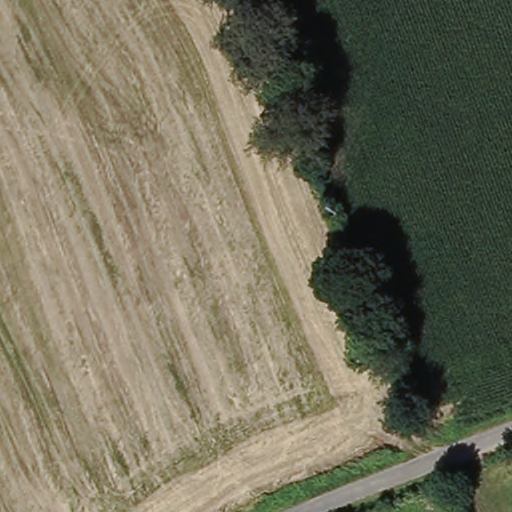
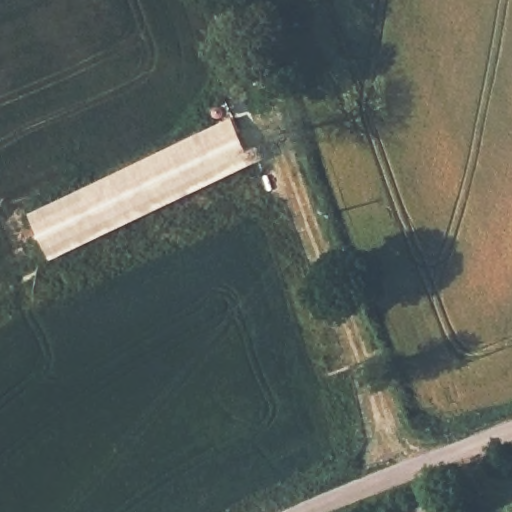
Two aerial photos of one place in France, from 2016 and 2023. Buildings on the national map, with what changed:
new [(235,119),(250,151),(261,146),(266,157),(50,258),(30,216),(235,119)]

